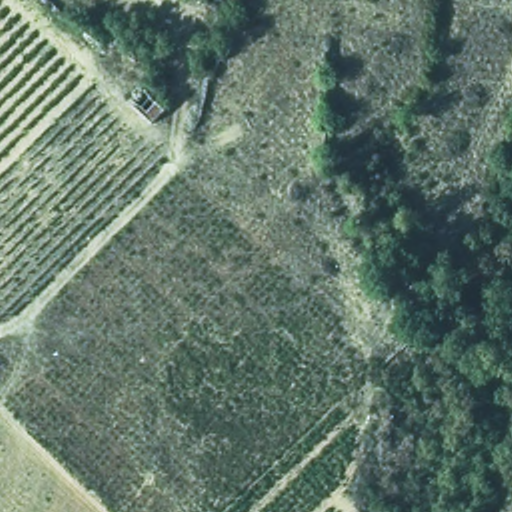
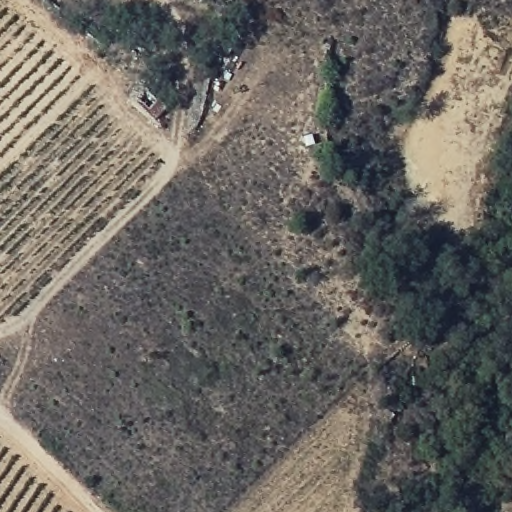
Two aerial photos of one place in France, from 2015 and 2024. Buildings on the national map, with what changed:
[]

